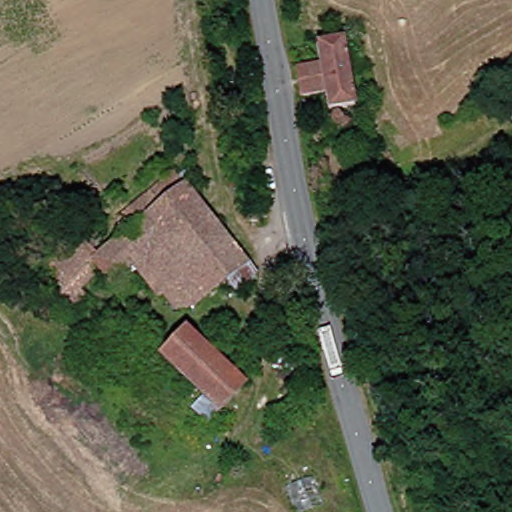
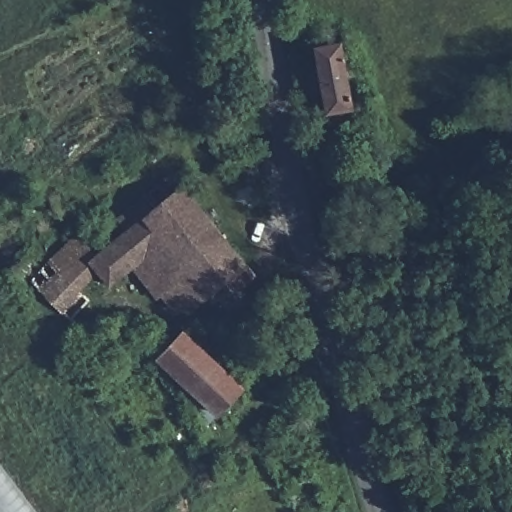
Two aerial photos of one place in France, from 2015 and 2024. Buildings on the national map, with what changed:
unchanged [(288,65),(312,63),(312,42),(349,41),(354,108),(317,110),(316,99),(290,98),(288,65)]
unchanged [(90,261),(106,247),(126,230),(116,217),(174,173),(224,235),(166,281),(146,256),(111,284),(100,269),(90,261)]
unchanged [(51,262),(91,232),(106,247),(90,261),(100,269),(75,289),(51,262)]
unchanged [(244,263),(185,306),(166,281),(224,235),(244,263)]
unchanged [(65,324),(31,278),(51,262),(75,289),(86,307),(79,315),(65,324)]
unchanged [(220,412),(159,357),(185,329),(245,386),(220,412)]
new [(0,512),(0,463),(37,512),(0,512)]

